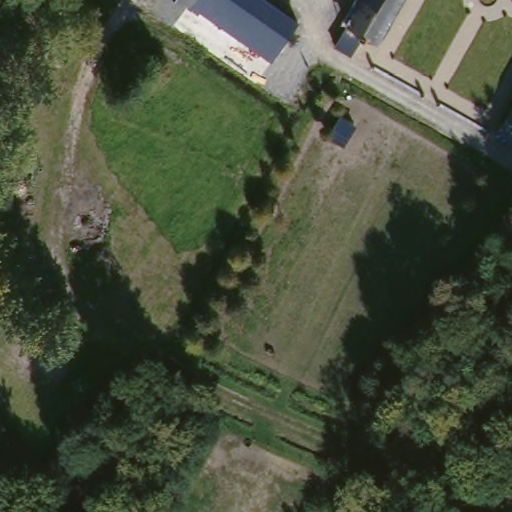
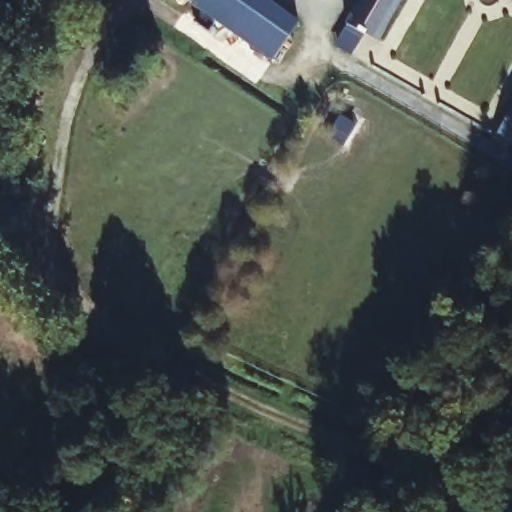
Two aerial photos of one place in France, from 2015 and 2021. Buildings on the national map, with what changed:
unchanged [(202,2),(198,0),(203,0),(202,2)]
unchanged [(280,49),(210,7),(202,2),(203,0),(273,0),(297,14),(280,49)]
unchanged [(400,1),(380,36),(349,18),(359,0),(400,0),(400,1)]
unchanged [(500,129),(512,107),(512,136),(500,129)]

